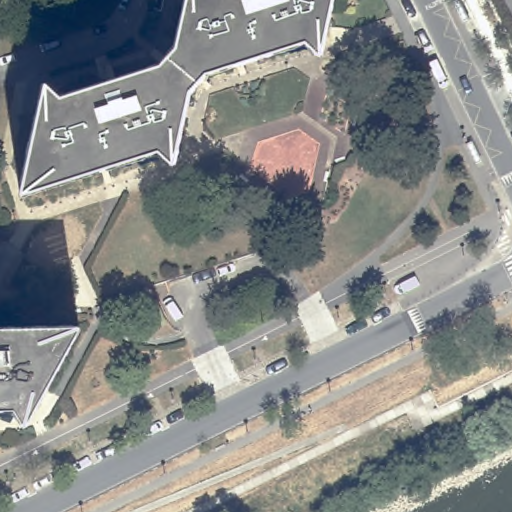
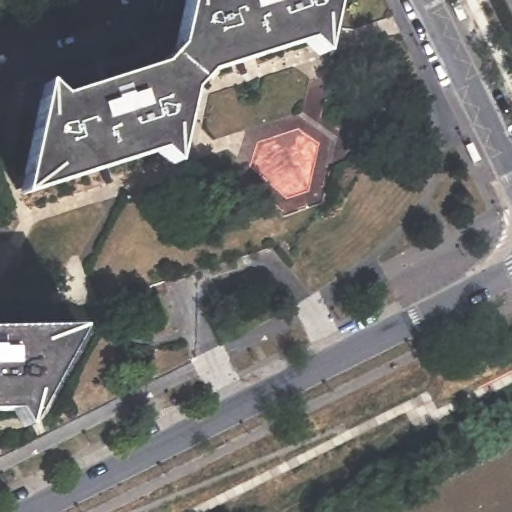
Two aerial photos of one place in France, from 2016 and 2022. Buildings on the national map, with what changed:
unchanged [(66,98),(165,66),(181,48),(191,0),(337,0),(325,57),(310,43),(210,74),(195,93),(179,166),(164,153),(25,195),(51,85),(66,98)]
unchanged [(31,428),(21,412),(0,412),(0,330),(85,329),(31,428)]

